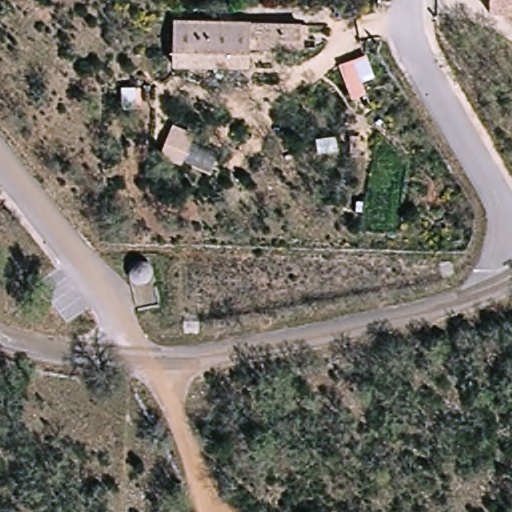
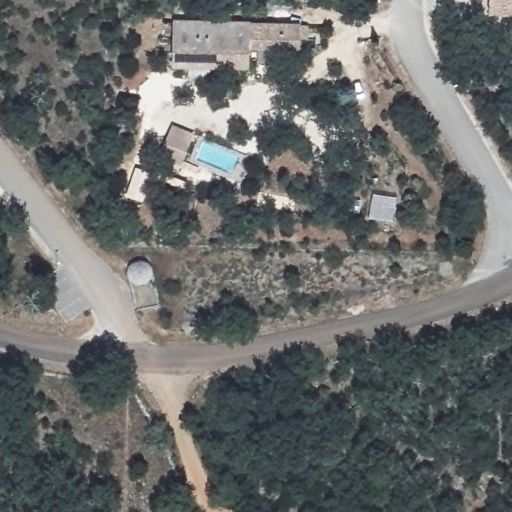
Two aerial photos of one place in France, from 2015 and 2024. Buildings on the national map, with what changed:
unchanged [(512,18),(490,18),(490,0),(512,0),(512,18)]
unchanged [(254,50),(253,68),(174,70),(172,25),(302,26),(313,25),(311,40),(302,40),(302,50),(254,50)]
unchanged [(126,262),(132,259),(149,274),(147,284),(140,289),(130,290),(125,286),(121,277),(126,262)]

